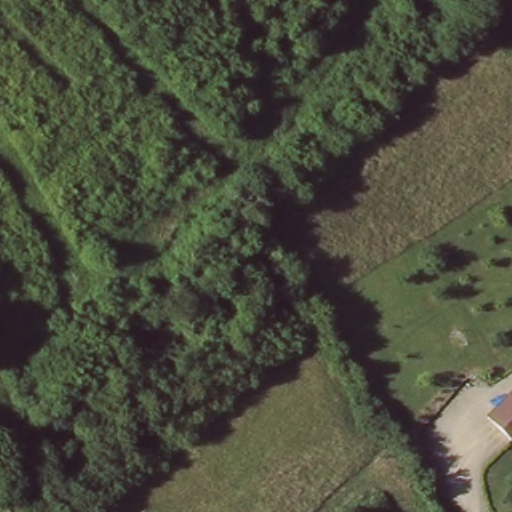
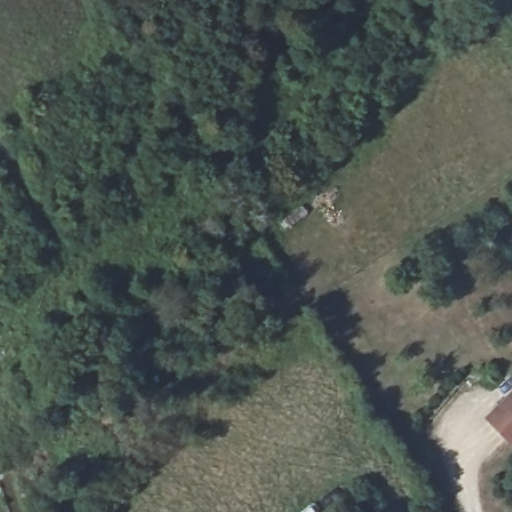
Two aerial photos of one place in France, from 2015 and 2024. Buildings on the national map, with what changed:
unchanged [(489,420),(512,396),(512,442),(489,420)]

